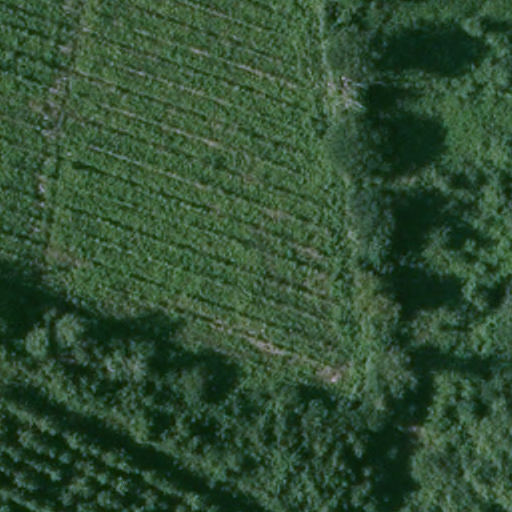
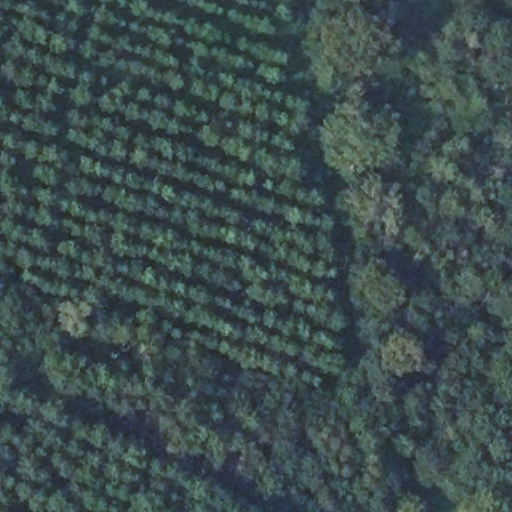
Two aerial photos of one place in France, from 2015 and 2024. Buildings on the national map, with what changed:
[]

